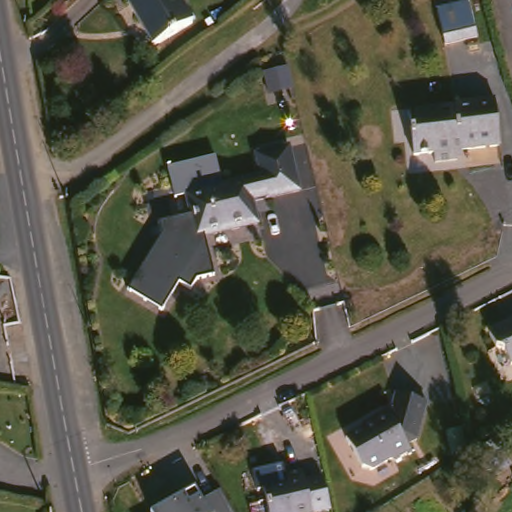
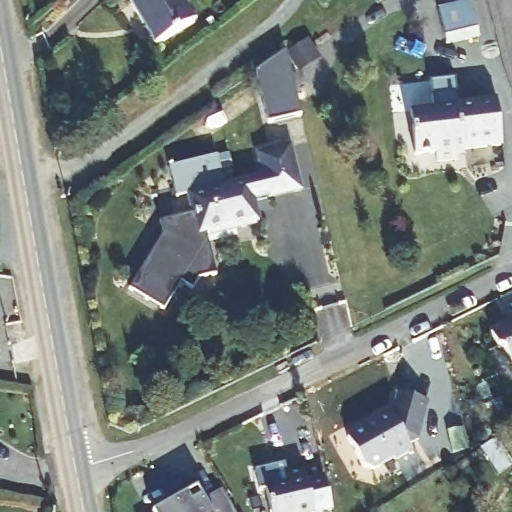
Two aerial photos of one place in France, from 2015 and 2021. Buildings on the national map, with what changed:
unchanged [(200,16),(164,42),(137,0),(190,0),(200,16)]
unchanged [(476,6),(484,40),(452,47),(444,13),(476,6)]
new [(301,116),(266,123),(254,70),(283,51),(301,116)]
unchanged [(504,91),(509,142),(467,147),(468,155),(444,158),(444,150),(417,153),(412,107),(463,102),(462,95),(504,91)]
unchanged [(229,150),(234,180),(270,174),(266,149),(301,143),(309,189),(276,195),(275,193),(262,195),(267,224),(205,235),(202,216),(197,188),(186,190),(180,159),(229,150)]
unchanged [(162,239),(160,222),(202,216),(205,235),(209,274),(197,284),(186,281),(167,309),(134,290),(162,239)]
unchanged [(501,342),(494,328),(512,320),(512,351),(509,345),(501,342)]
unchanged [(401,390),(432,399),(422,436),(412,442),(416,447),(398,457),(397,455),(377,467),(368,465),(351,436),(376,421),(374,419),(397,405),(401,390)]
unchanged [(512,430),(512,443),(506,437),(512,430)]
unchanged [(315,475),(333,471),(341,503),(307,512),(281,512),(274,484),(296,478),(294,468),(312,464),(315,475)]
unchanged [(189,501),(201,498),(223,493),(230,512),(157,512),(156,509),(189,501)]

